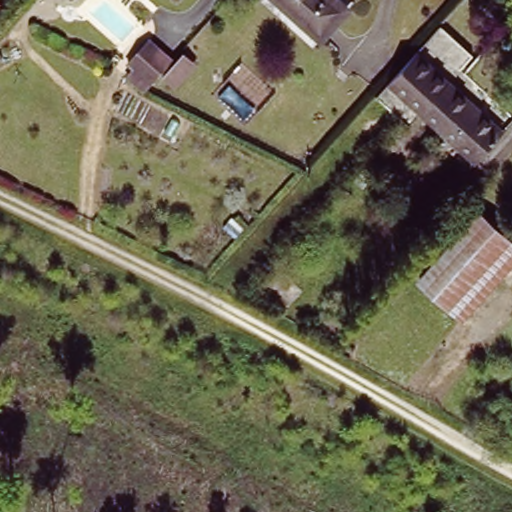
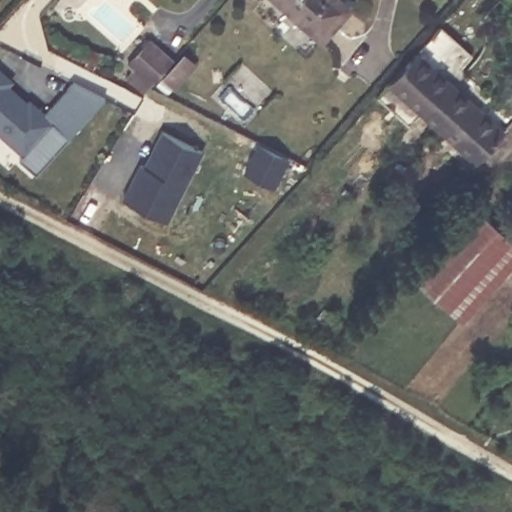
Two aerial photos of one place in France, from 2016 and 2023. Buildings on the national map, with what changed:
unchanged [(283,0),(340,0),(349,7),(323,36),(283,0)]
unchanged [(464,44),(402,115),(382,97),(444,25),(464,44)]
unchanged [(464,44),(477,54),(453,81),(507,129),(481,160),(426,112),(414,125),(402,115),(464,44)]
unchanged [(134,65),(153,45),(175,65),(157,86),(134,65)]
unchanged [(197,67),(178,89),(168,80),(186,58),(197,67)]
new [(39,172),(21,159),(23,154),(0,134),(0,67),(15,80),(13,84),(29,99),(31,97),(46,111),(73,80),(106,97),(39,172)]
new [(168,221),(124,199),(141,164),(144,166),(161,130),(206,151),(168,221)]
unchanged [(481,209),(512,238),(512,265),(462,321),(415,280),(481,209)]
unchanged [(315,336),(327,322),(337,331),(324,345),(315,336)]

